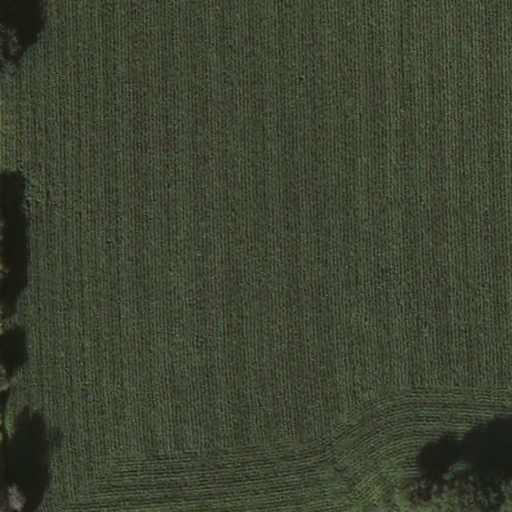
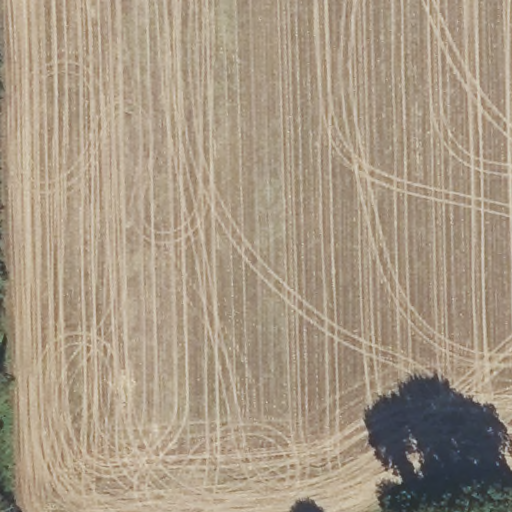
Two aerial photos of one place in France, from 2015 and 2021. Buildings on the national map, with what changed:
[]

